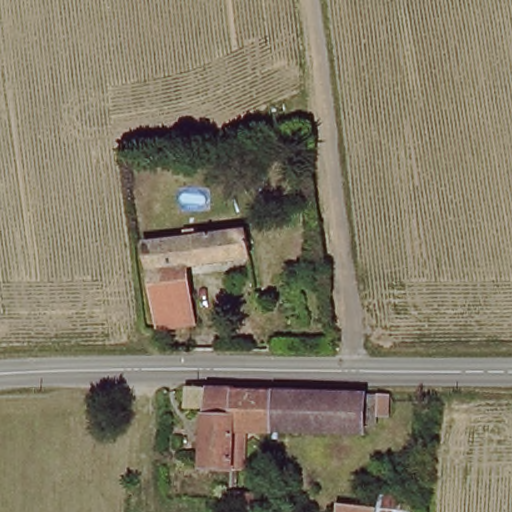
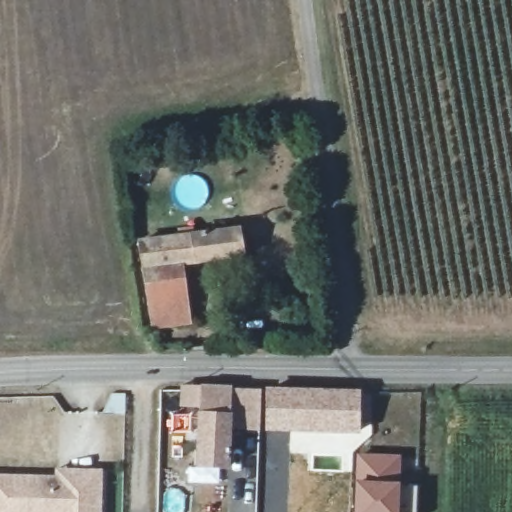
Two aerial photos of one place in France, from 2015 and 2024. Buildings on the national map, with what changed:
unchanged [(141,239),(248,226),(253,252),(182,265),(193,322),(159,328),(141,239)]
demolished [(240,302),(260,298),(270,353),(249,353),(240,302)]
unchanged [(266,428),(264,388),(324,388),(352,387),(353,427),(266,428)]
unchanged [(264,388),(266,428),(227,427),(226,470),(197,468),(198,416),(180,416),(181,388),(264,388)]
unchanged [(370,397),(381,396),(381,418),(371,419),(370,397)]
new [(355,453),(401,454),(401,485),(416,485),(415,512),(353,512),(355,453)]
new [(57,475),(57,469),(104,471),(103,512),(0,512),(0,474),(57,475)]
demolished [(419,512),(336,512),(339,502),(377,503),(378,485),(424,485),(419,512)]
demolished [(240,503),(229,502),(229,488),(248,489),(247,503),(240,503)]

